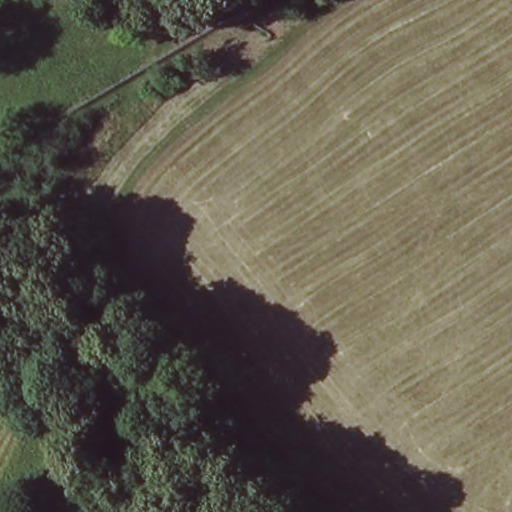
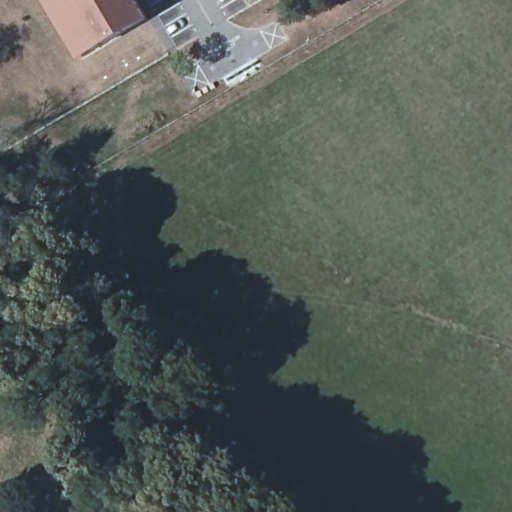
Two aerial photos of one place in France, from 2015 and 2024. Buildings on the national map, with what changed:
new [(77,60),(42,0),(134,0),(145,18),(77,60)]

